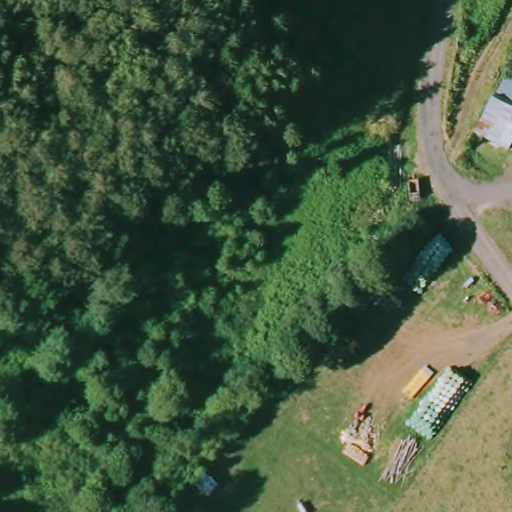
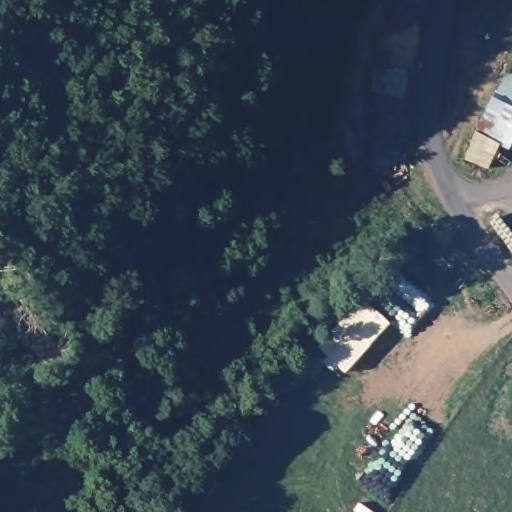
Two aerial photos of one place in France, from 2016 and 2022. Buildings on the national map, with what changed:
unchanged [(500,150),(477,133),(512,77),(512,130),(500,150)]

